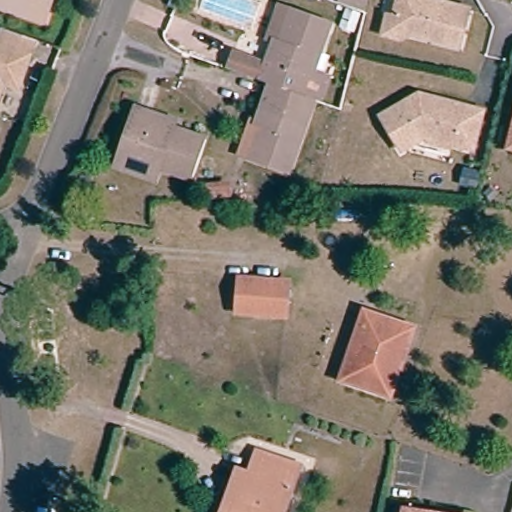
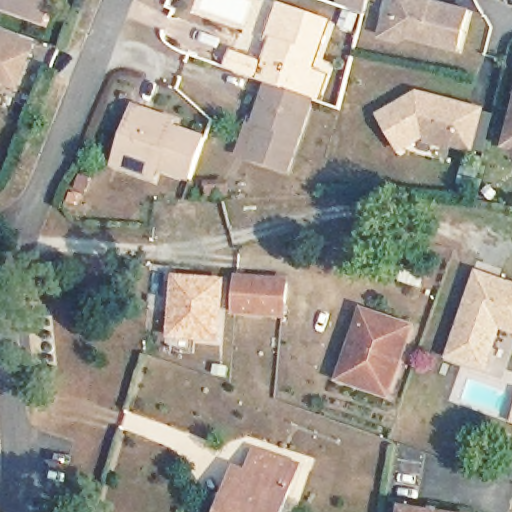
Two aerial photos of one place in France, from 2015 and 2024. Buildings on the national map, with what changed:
unchanged [(0,7),(0,0),(50,0),(45,16),(43,23),(31,19),(0,7)]
unchanged [(337,2),(338,0),(369,0),(366,12),(337,2)]
unchanged [(381,26),(385,8),(393,10),(395,0),(460,0),(468,2),(458,39),(402,25),(400,31),(390,29),(381,26)]
unchanged [(235,52),(266,64),(274,41),(267,38),(279,6),(292,11),(330,24),(313,70),(328,76),(318,103),(314,101),(304,97),(269,84),(229,69),(235,52)]
unchanged [(23,89),(9,85),(0,107),(0,43),(3,44),(9,30),(41,41),(23,89)]
unchanged [(288,172),(250,159),(262,126),(254,124),(269,84),(304,97),(314,101),(288,172)]
unchanged [(481,111),(471,151),(423,138),(400,152),(379,117),(417,95),(481,111)]
unchanged [(138,175),(114,166),(136,108),(176,123),(174,128),(205,140),(190,181),(159,169),(155,181),(138,175)]
unchanged [(511,138),(512,132),(512,138),(511,138)]
unchanged [(479,185),(477,191),(460,186),(465,168),(482,173),(479,185)]
unchanged [(209,185),(230,185),(230,200),(209,200),(209,185)]
new [(171,274),(226,279),(220,345),(165,339),(171,274)]
new [(466,311),(479,275),(512,286),(512,331),(500,327),(486,370),(450,357),(462,322),(466,311)]
unchanged [(239,279),(289,281),(285,318),(236,316),(239,279)]
unchanged [(365,314),(411,330),(389,396),(343,380),(365,314)]
unchanged [(263,456),(302,471),(287,512),(228,512),(242,475),(250,478),(254,480),(263,456)]
unchanged [(405,508),(434,512),(404,512),(405,508)]

